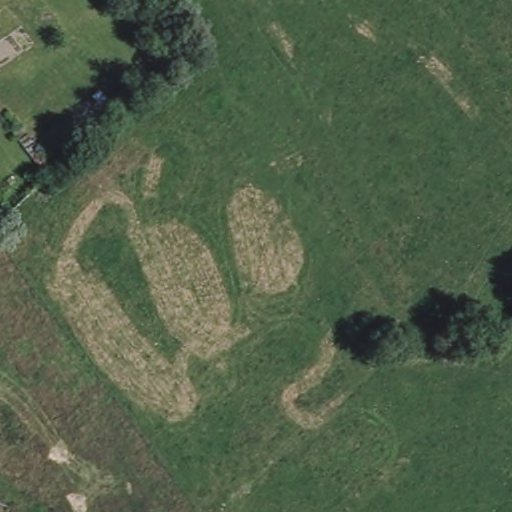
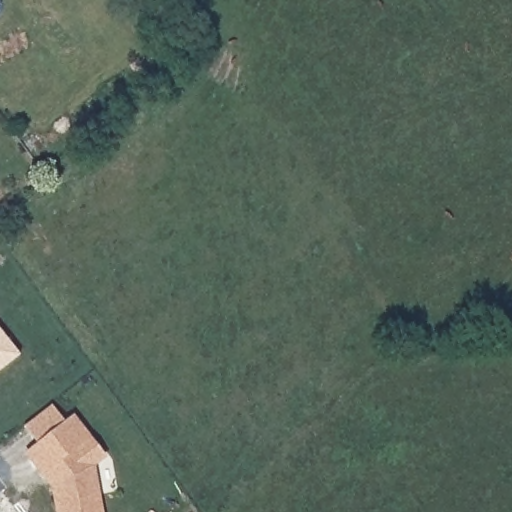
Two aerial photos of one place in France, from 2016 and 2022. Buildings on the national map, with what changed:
new [(20,355),(0,371),(0,329),(20,355)]
new [(42,397),(57,415),(30,437),(15,420),(42,397)]
new [(30,438),(65,409),(96,448),(85,457),(97,512),(54,512),(47,479),(36,467),(20,446),(30,438)]

